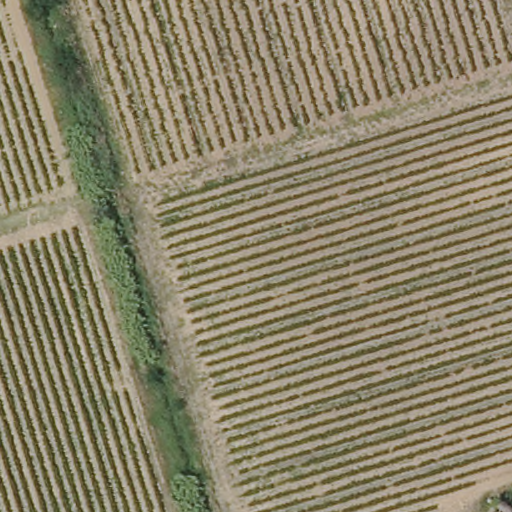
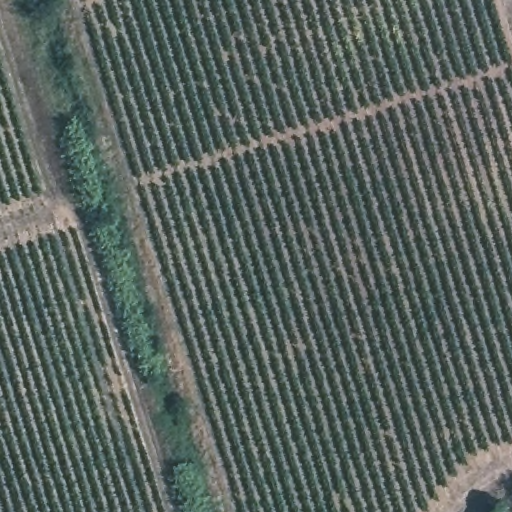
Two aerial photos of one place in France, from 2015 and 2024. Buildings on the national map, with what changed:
unchanged [(502,512),(486,512),(492,505),(502,512)]

